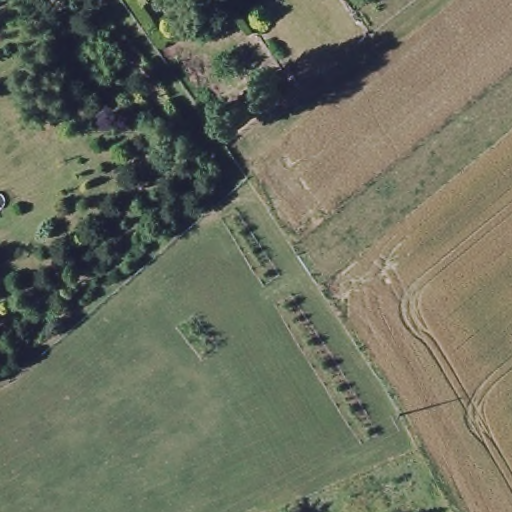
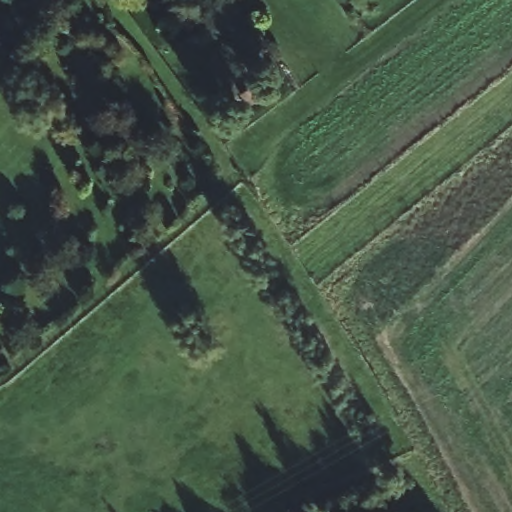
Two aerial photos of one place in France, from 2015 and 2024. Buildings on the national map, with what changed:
[]

